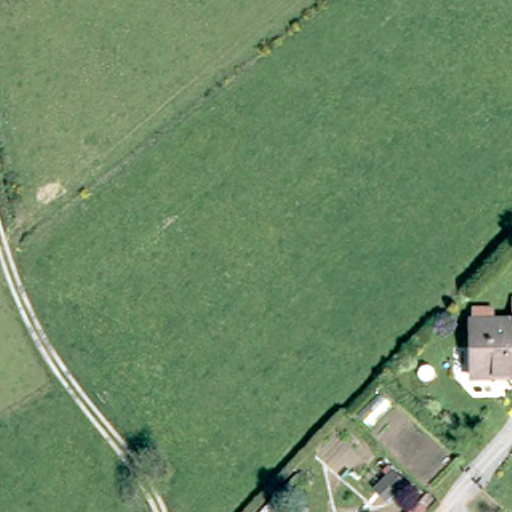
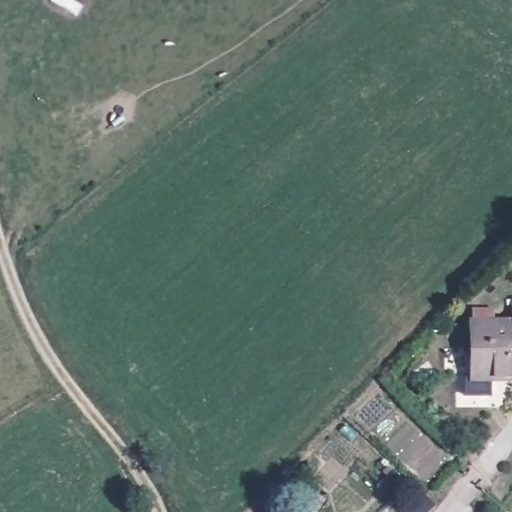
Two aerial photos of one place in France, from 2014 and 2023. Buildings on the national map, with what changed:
unchanged [(508,379),(472,380),(470,321),(512,319),(511,298),(512,298),(512,371),(507,372),(508,379)]

